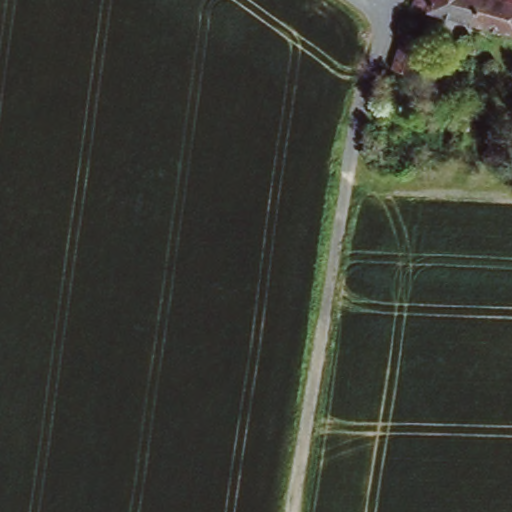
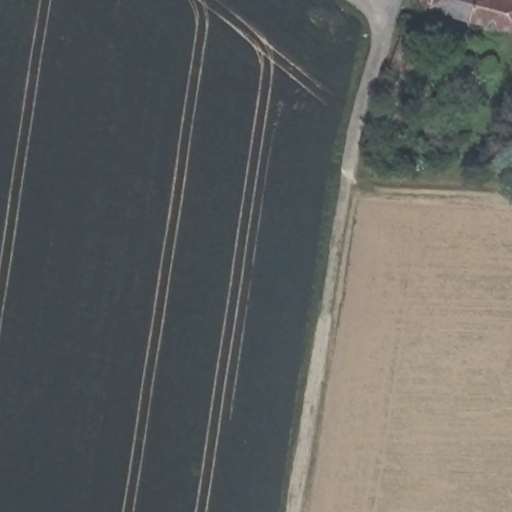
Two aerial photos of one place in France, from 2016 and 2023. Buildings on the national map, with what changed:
unchanged [(512,40),(407,11),(411,0),(512,0),(512,40)]
unchanged [(404,30),(430,37),(420,72),(392,65),(404,30)]

